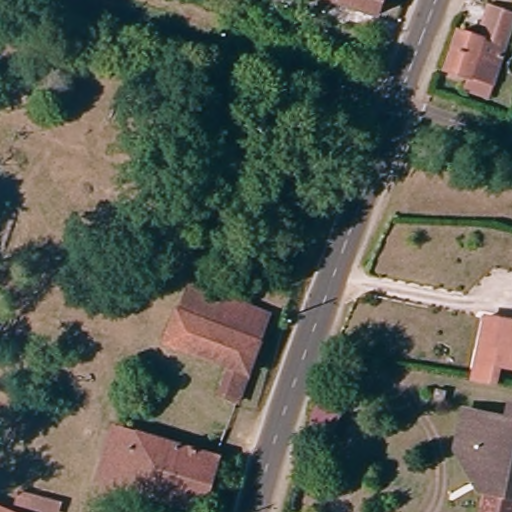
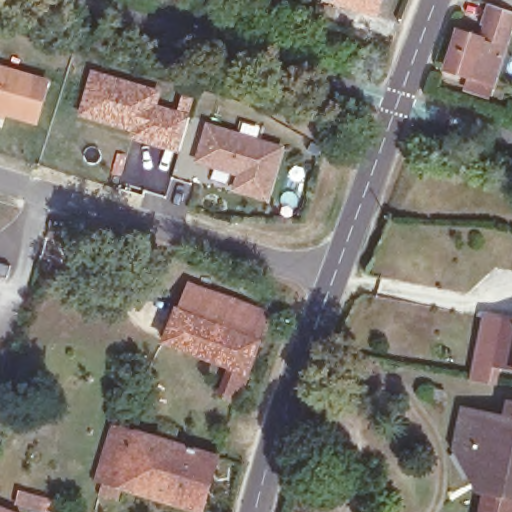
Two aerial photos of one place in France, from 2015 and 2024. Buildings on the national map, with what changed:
unchanged [(374,19),(332,6),(334,0),(379,0),(374,19)]
unchanged [(488,9),(512,18),(512,20),(506,38),(491,90),(466,81),(444,73),(455,38),(477,44),(482,30),(488,9)]
new [(128,137),(130,130),(78,116),(91,70),(161,91),(157,105),(190,114),(178,155),(128,137)]
new [(29,123),(0,115),(0,71),(40,83),(29,123)]
new [(230,190),(235,176),(194,165),(205,122),(285,147),(268,202),(230,190)]
unchanged [(240,409),(218,399),(233,369),(158,347),(183,282),(270,314),(240,409)]
unchanged [(512,324),(512,371),(511,380),(498,377),(495,392),(467,387),(479,318),(512,324)]
unchanged [(511,380),(512,372),(512,380),(511,380)]
unchanged [(488,501),(501,428),(504,411),(512,413),(512,512),(482,512),(484,500),(488,501)]
unchanged [(476,499),(451,456),(459,421),(501,428),(488,501),(484,500),(476,499)]
unchanged [(195,512),(181,508),(98,483),(112,430),(197,454),(212,459),(197,512),(195,512)]
unchanged [(0,512),(0,511),(5,512),(0,512)]

